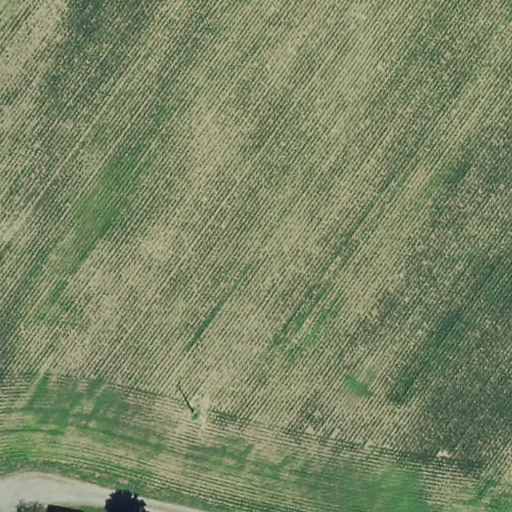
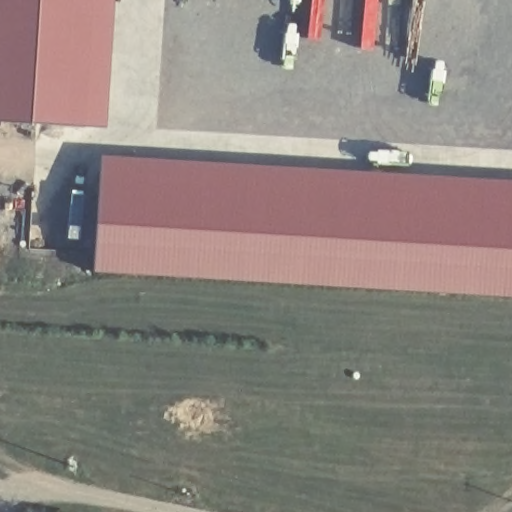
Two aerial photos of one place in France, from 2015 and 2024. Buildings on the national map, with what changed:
new [(85,127),(0,121),(0,0),(93,0),(85,127)]
new [(512,297),(93,271),(99,176),(512,201),(512,297)]

